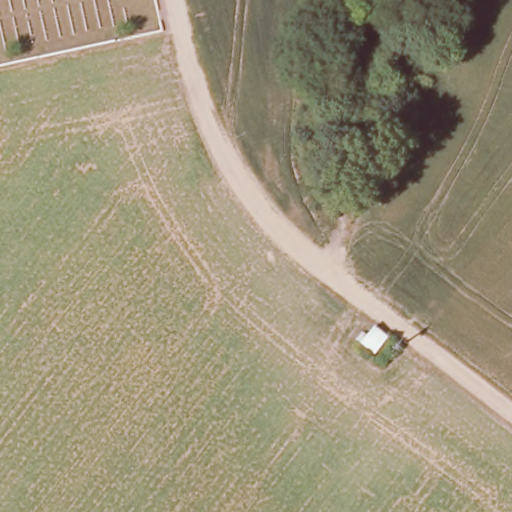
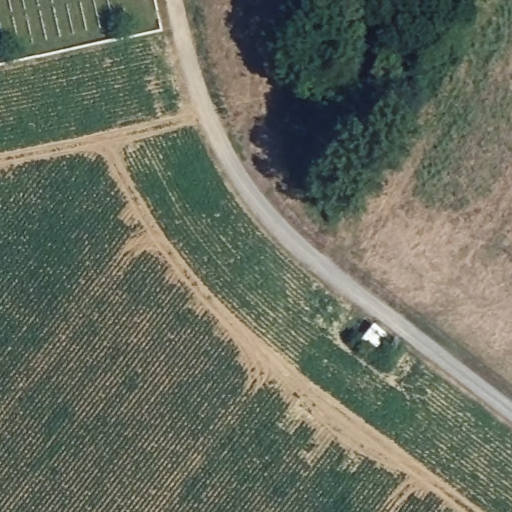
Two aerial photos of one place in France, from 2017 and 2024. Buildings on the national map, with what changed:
unchanged [(361,337),(374,318),(391,332),(377,351),(361,337)]

